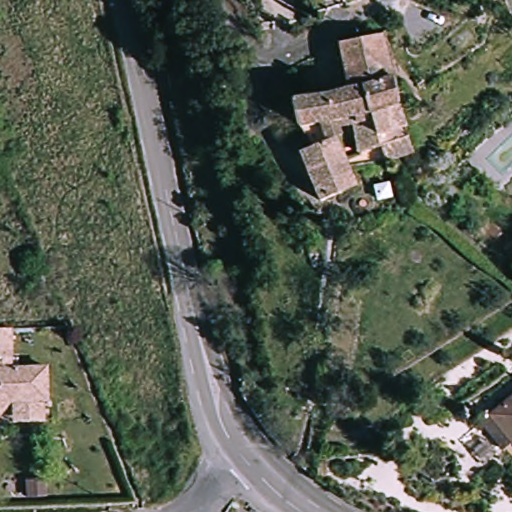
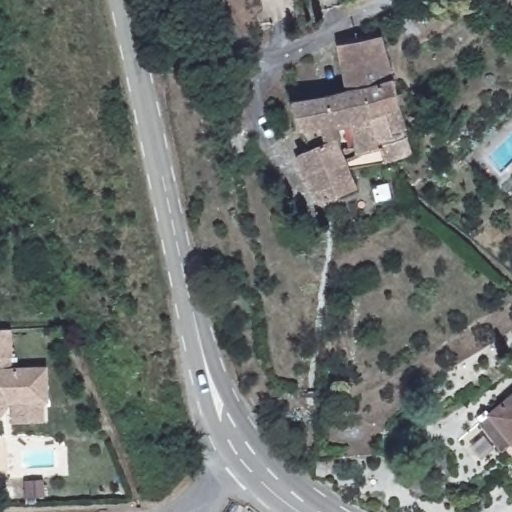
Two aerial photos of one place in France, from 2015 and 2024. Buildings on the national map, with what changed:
unchanged [(347,183),(333,190),(329,192),(325,195),(311,176),(298,154),(307,146),(300,134),(295,120),(293,105),(292,100),(344,87),(336,41),(381,31),(387,57),(394,101),(404,135),(408,152),(385,159),(383,160),(360,164),(356,145),(350,121),(332,125),(334,131),(330,134),(344,157),(356,176),(347,183)]
unchanged [(48,403),(10,405),(0,417),(0,331),(12,330),(12,367),(47,366),(48,403)]
unchanged [(488,418),(512,397),(512,442),(509,444),(498,430),(488,418)]

